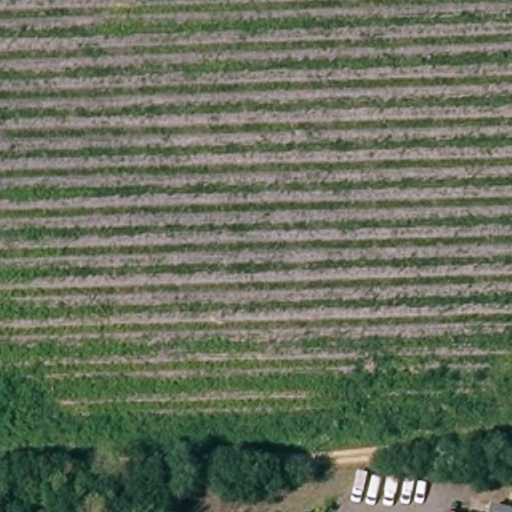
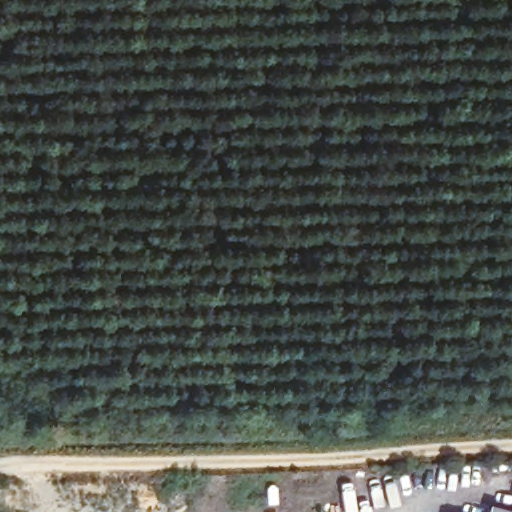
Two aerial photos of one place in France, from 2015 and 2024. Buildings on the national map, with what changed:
unchanged [(512,512),(486,512),(488,506),(512,512)]

